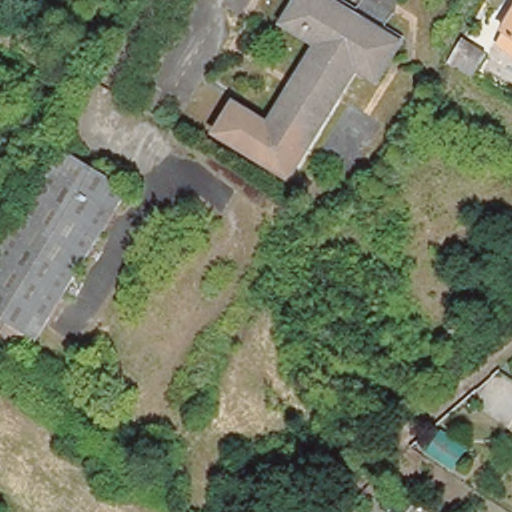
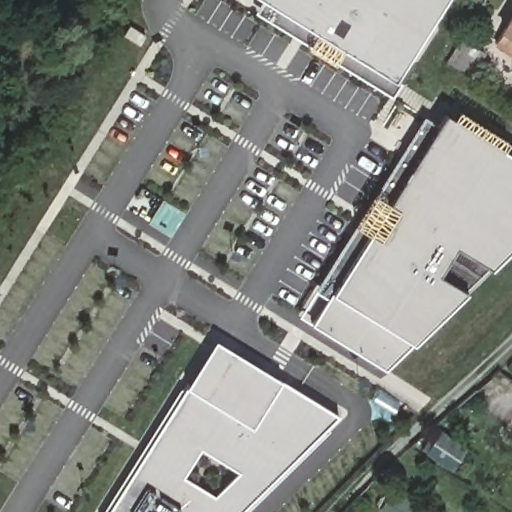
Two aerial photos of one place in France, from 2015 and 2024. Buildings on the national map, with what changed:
demolished [(303,0),(337,0),(404,40),(381,79),(362,68),(288,182),(215,138),(223,128),(220,121),(225,113),(232,112),(239,103),(274,124),(323,44),(289,22),(303,0)]
new [(388,70),(273,0),(431,0),(388,70)]
unchanged [(496,42),(512,17),(512,53),(496,42)]
unchanged [(473,46),(486,54),(471,77),(446,60),(461,38),(473,46)]
new [(387,371),(312,324),(445,111),(512,153),(512,248),(494,266),(471,288),(387,371)]
demolished [(38,332),(30,344),(5,329),(13,316),(0,308),(0,256),(68,146),(130,184),(40,333),(38,332)]
new [(214,339),(274,375),(270,382),(223,353),(200,390),(188,382),(214,339)]
new [(200,390),(223,353),(270,382),(274,375),(340,416),(242,512),(107,512),(188,382),(200,390)]
unchanged [(464,446),(451,467),(428,452),(443,431),(464,446)]

